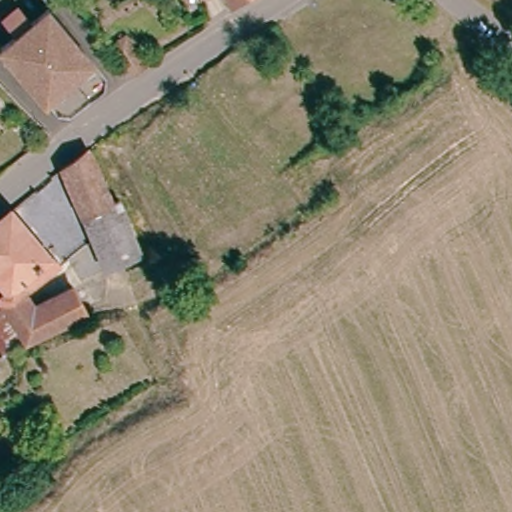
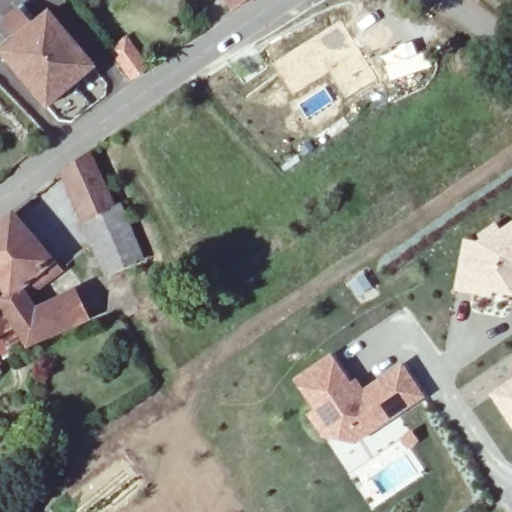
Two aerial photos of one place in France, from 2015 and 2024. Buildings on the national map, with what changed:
unchanged [(233,11),(228,0),(249,0),(233,11)]
unchanged [(96,70),(47,108),(1,52),(19,37),(6,20),(18,10),(32,27),(51,11),(96,70)]
unchanged [(122,38),(138,25),(160,55),(143,67),(122,38)]
unchanged [(139,257),(110,271),(63,171),(90,152),(139,257)]
unchanged [(18,290),(0,268),(0,224),(21,207),(71,265),(51,283),(34,290),(44,302),(86,284),(98,312),(36,340),(13,297),(18,290)]
new [(453,289),(464,237),(476,240),(479,237),(477,234),(496,221),(500,229),(512,220),(512,297),(453,289)]
unchanged [(16,350),(0,322),(0,313),(12,307),(33,341),(16,350)]
new [(350,381),(356,377),(363,387),(403,361),(425,396),(356,443),(322,437),(307,413),(314,408),(293,379),(331,352),(350,381)]
new [(488,394),(512,378),(512,428),(488,394)]

